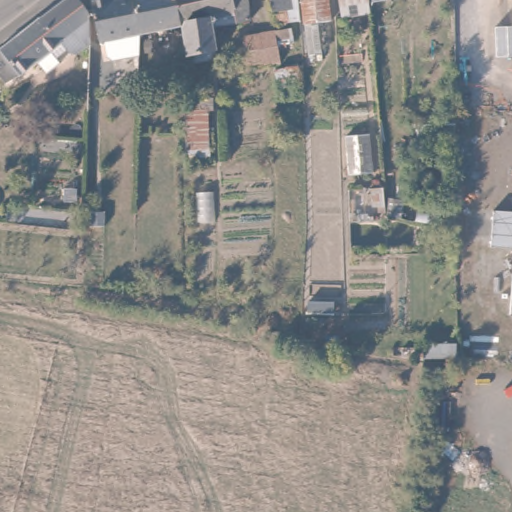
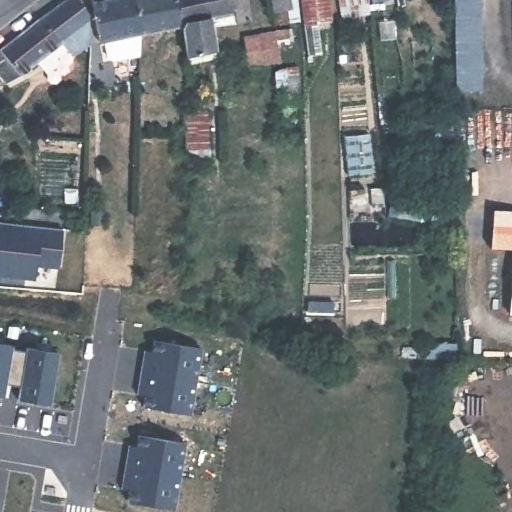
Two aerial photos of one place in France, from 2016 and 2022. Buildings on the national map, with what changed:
unchanged [(74,0),(80,13),(62,29),(68,36),(63,40),(68,46),(55,58),(50,53),(14,85),(0,70),(0,53),(59,0),(74,0)]
unchanged [(115,0),(129,0),(131,13),(116,15),(116,20),(118,39),(98,42),(95,18),(83,19),(80,13),(74,0),(110,0),(110,1),(115,0)]
unchanged [(171,30),(133,36),(118,39),(116,20),(116,15),(131,13),(129,0),(232,0),(239,31),(231,33),(227,34),(225,20),(200,24),(205,54),(176,59),(171,30)]
unchanged [(319,26),(321,54),(306,55),(302,20),(272,25),(271,0),(328,0),(330,21),(319,26)]
unchanged [(283,36),(284,60),(262,61),(259,38),(283,36)]
new [(285,68),(285,67),(298,66),(299,85),(298,98),(285,99),(283,86),(276,88),(274,70),(285,68)]
unchanged [(213,99),(215,150),(183,152),(181,101),(213,99)]
unchanged [(372,131),(376,174),(345,177),(342,135),(372,131)]
new [(214,192),(215,222),(196,223),(195,193),(214,192)]
unchanged [(511,250),(491,248),(493,209),(512,211),(512,252),(511,250)]
new [(0,223),(60,229),(57,268),(38,267),(34,279),(0,275),(0,223)]
unchanged [(509,317),(512,273),(512,317),(509,317)]
new [(141,407),(143,394),(136,393),(143,349),(150,351),(151,339),(202,348),(189,416),(141,407)]
new [(18,384),(5,383),(3,396),(0,395),(0,341),(11,343),(10,349),(24,351),(24,347),(58,353),(49,406),(16,398),(18,384)]
new [(175,510),(126,501),(128,489),(120,488),(128,444),(137,447),(139,435),(186,442),(175,510)]

